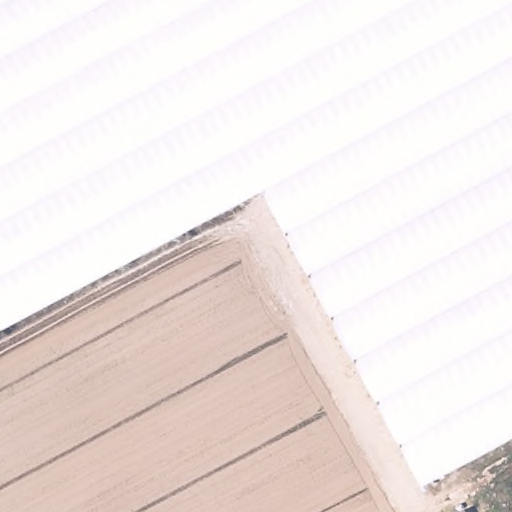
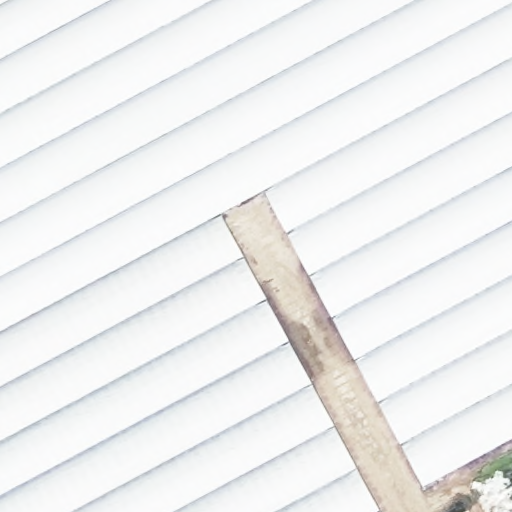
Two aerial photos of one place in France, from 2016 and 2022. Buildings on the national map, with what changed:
unchanged [(0,330),(0,0),(512,0),(512,435),(422,483),(264,190),(220,213),(0,330)]
new [(382,512),(0,512),(0,330),(220,213),(382,512)]

